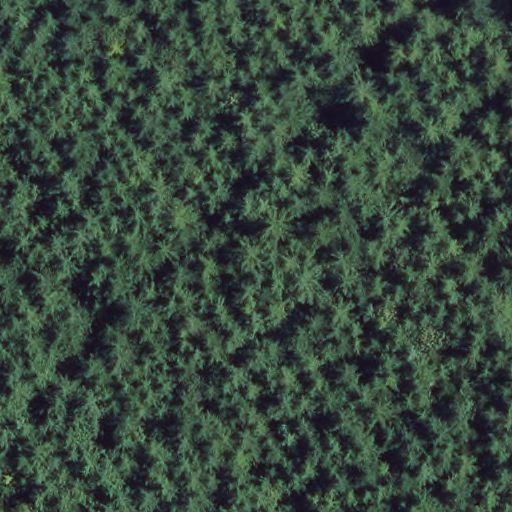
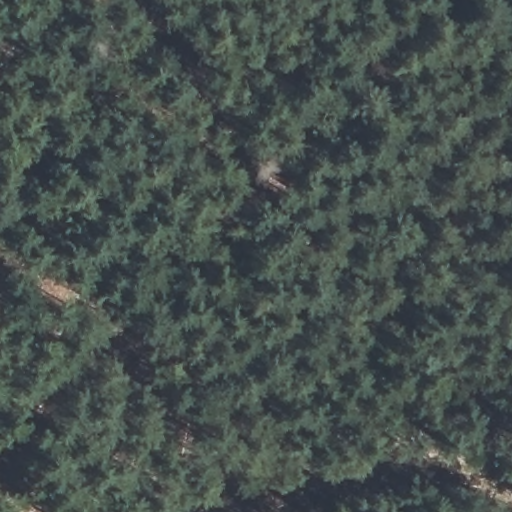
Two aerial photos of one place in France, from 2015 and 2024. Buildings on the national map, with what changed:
[]

